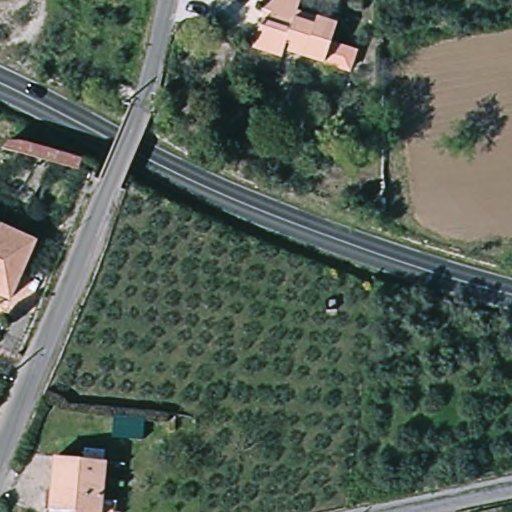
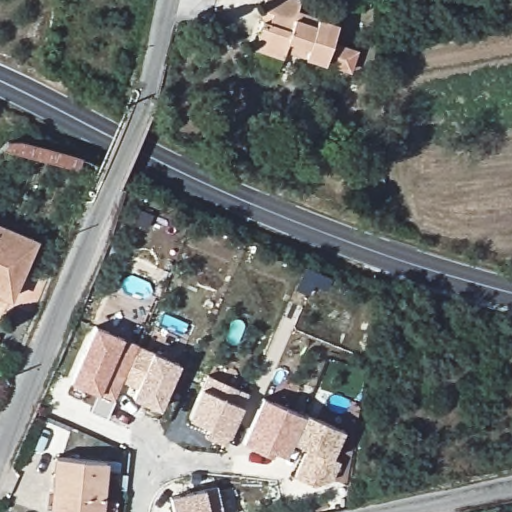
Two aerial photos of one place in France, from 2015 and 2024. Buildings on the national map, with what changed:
unchanged [(275,28),(278,14),(267,12),(271,0),(288,0),(306,5),(302,20),(341,31),(330,70),(286,58),(285,63),(259,55),(267,25),(275,28)]
new [(8,142),(23,142),(83,159),(80,170),(2,148),(8,142)]
demolished [(88,174),(83,187),(1,165),(12,154),(28,157),(88,174)]
unchanged [(14,296),(0,290),(0,224),(40,243),(14,296)]
new [(99,393),(72,381),(96,327),(138,346),(106,417),(91,411),(99,393)]
new [(179,362),(159,407),(131,394),(136,384),(123,379),(138,346),(151,350),(179,362)]
new [(242,404),(228,436),(224,444),(205,435),(209,425),(187,416),(201,385),(207,374),(248,392),(242,404)]
new [(304,414),(305,412),(344,430),(333,458),(340,461),(332,478),(314,483),(293,474),(303,445),(291,440),(286,452),(274,447),(270,454),(243,440),(261,397),(304,414)]
unchanged [(106,512),(84,512),(84,511),(57,509),(59,459),(109,461),(106,512)]
new [(172,512),(169,495),(205,488),(217,485),(222,512),(172,512)]

